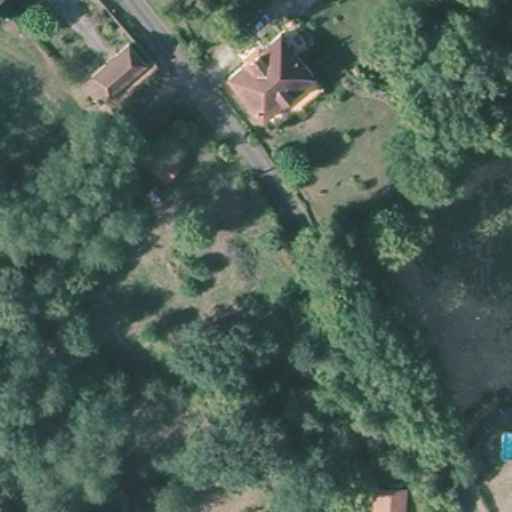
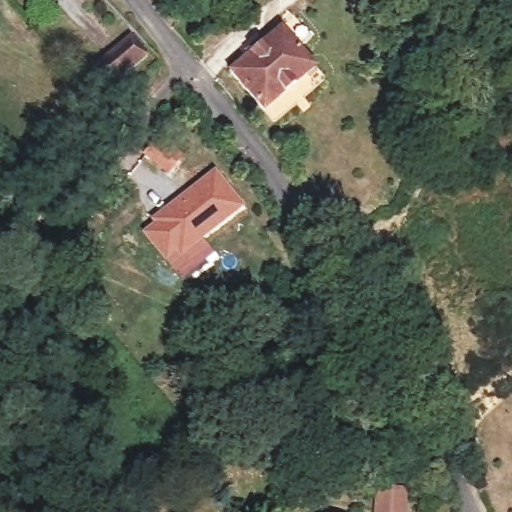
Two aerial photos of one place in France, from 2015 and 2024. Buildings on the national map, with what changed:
unchanged [(230,71),(281,29),(288,23),(300,38),(295,42),(316,69),(260,110),(230,71)]
unchanged [(152,45),(104,88),(83,70),(134,24),(152,45)]
unchanged [(167,176),(139,156),(152,137),(185,160),(167,176)]
new [(158,229),(155,225),(216,177),(243,212),(182,260),(178,256),(167,265),(146,238),(158,229)]
unchanged [(407,488),(406,512),(373,512),(375,486),(407,488)]

